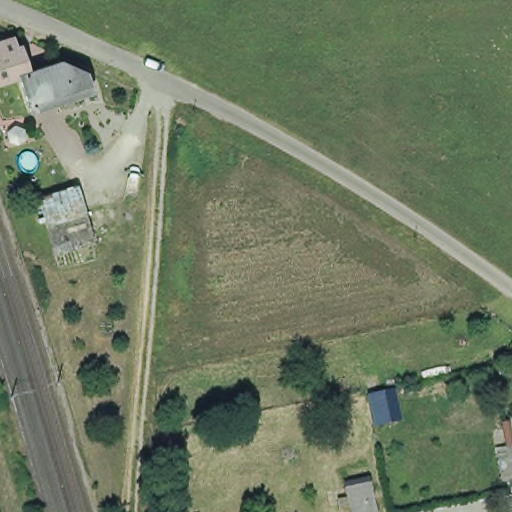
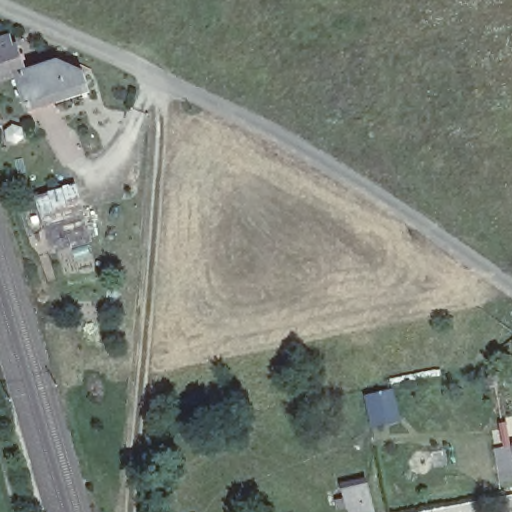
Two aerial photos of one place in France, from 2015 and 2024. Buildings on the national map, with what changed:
unchanged [(0,35),(7,33),(10,42),(17,40),(26,68),(19,70),(0,76),(0,35)]
unchanged [(60,57),(85,71),(90,89),(30,106),(19,70),(26,68),(60,57)]
unchanged [(90,239),(49,249),(35,192),(76,181),(90,239)]
unchanged [(357,512),(350,512),(347,501),(342,484),(365,479),(371,508),(357,512)]

